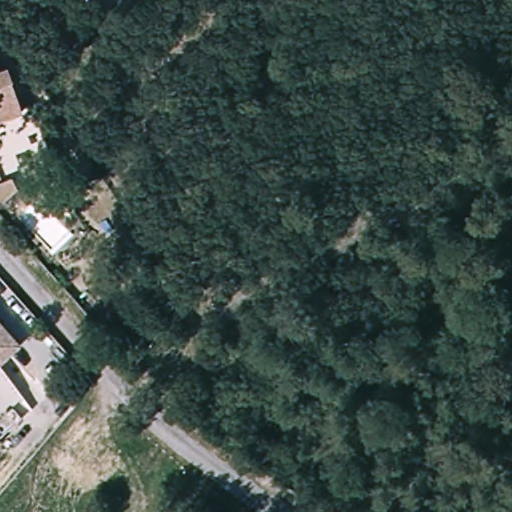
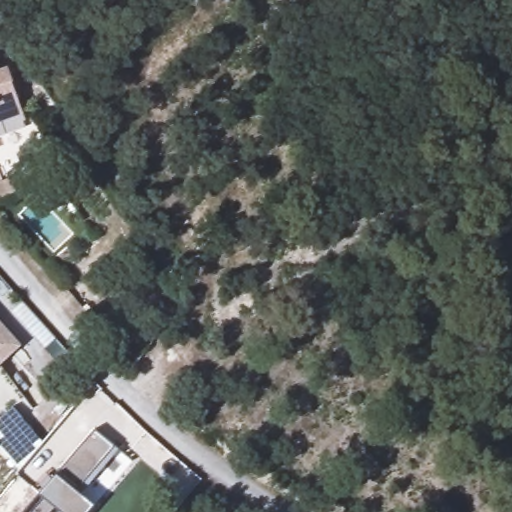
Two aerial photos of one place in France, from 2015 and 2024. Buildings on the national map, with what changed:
unchanged [(0,140),(0,138),(0,74),(4,81),(14,76),(31,107),(37,120),(0,140)]
unchanged [(20,343),(0,363),(0,322),(20,343)]
new [(42,443),(19,471),(0,448),(0,418),(12,407),(42,443)]
new [(118,450),(81,495),(93,505),(88,512),(23,512),(39,495),(38,494),(55,474),(57,475),(94,430),(118,450)]

